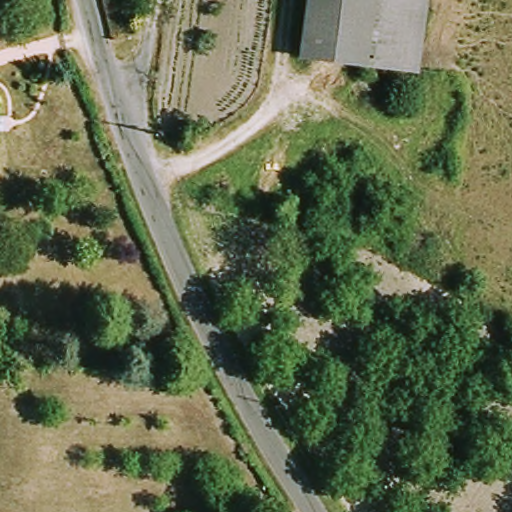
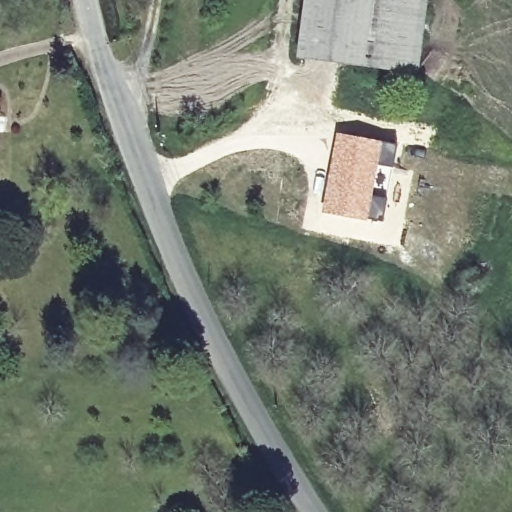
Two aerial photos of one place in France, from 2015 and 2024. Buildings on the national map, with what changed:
unchanged [(297,59),(305,0),(428,0),(418,77),(297,59)]
new [(337,132),(397,144),(393,167),(379,165),(374,195),(387,197),(383,221),(321,212),(337,132)]

